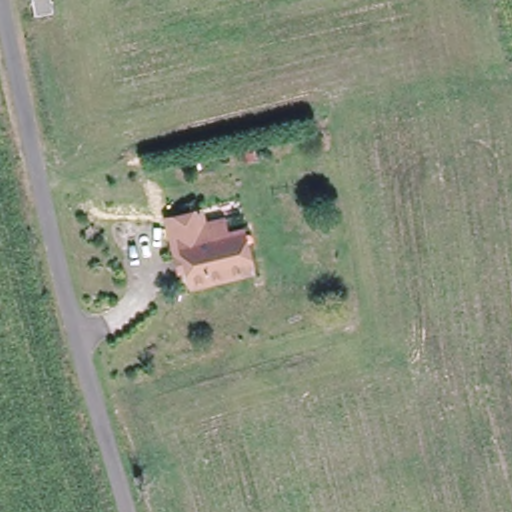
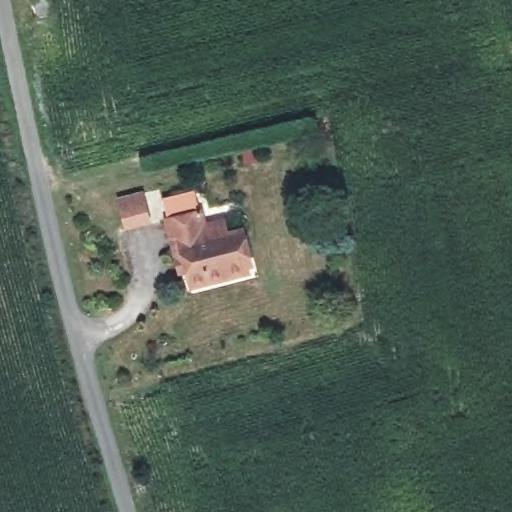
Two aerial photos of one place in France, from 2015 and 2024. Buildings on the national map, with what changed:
new [(142,191),(150,218),(126,225),(118,198),(142,191)]
unchanged [(172,239),(165,214),(200,204),(204,218),(223,214),(226,227),(242,223),(255,266),(249,268),(194,282),(190,267),(180,269),(172,239)]

